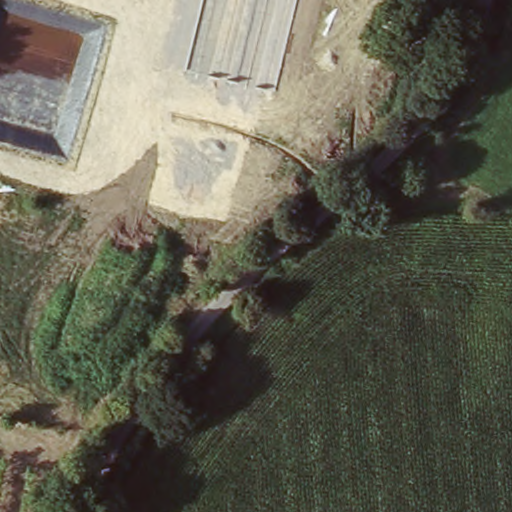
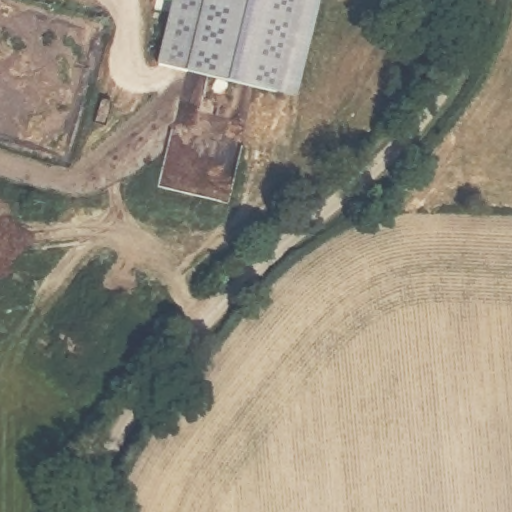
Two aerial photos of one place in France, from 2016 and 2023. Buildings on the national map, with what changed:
new [(170,0),(318,0),(293,95),(155,62),(170,0)]

